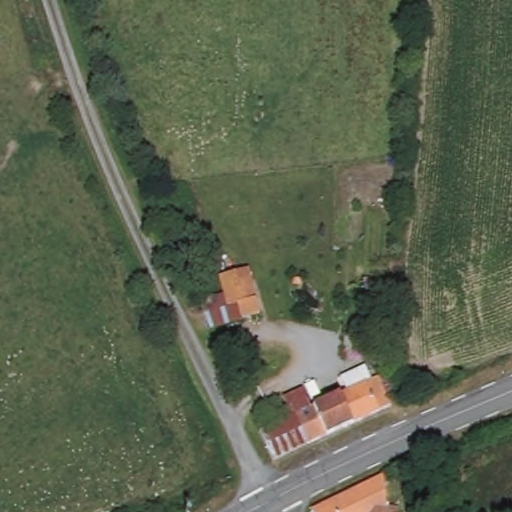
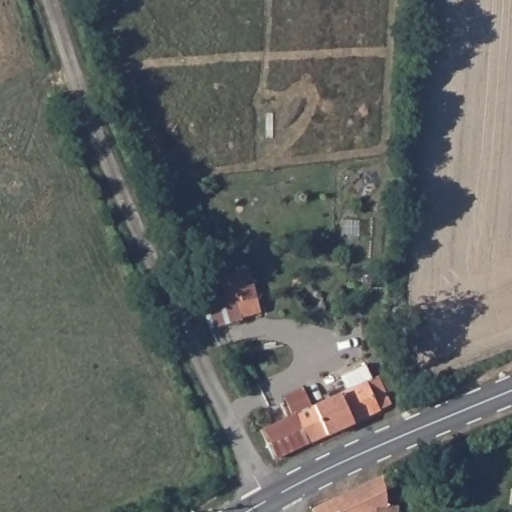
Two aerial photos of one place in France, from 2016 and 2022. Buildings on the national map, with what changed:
unchanged [(256,315),(240,319),(240,323),(208,331),(200,301),(210,299),(225,295),(220,277),(249,271),(254,301),(256,315)]
unchanged [(275,396),(298,385),(306,405),(373,379),(386,410),(269,457),(256,428),(283,416),(275,396)]
unchanged [(385,503),(398,504),(397,512),(315,512),(312,507),(387,474),(385,503)]

